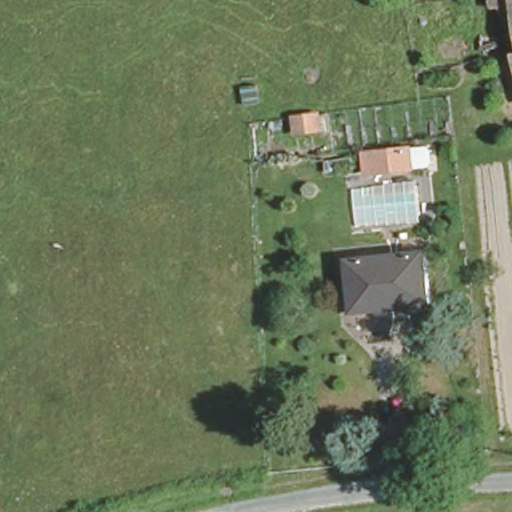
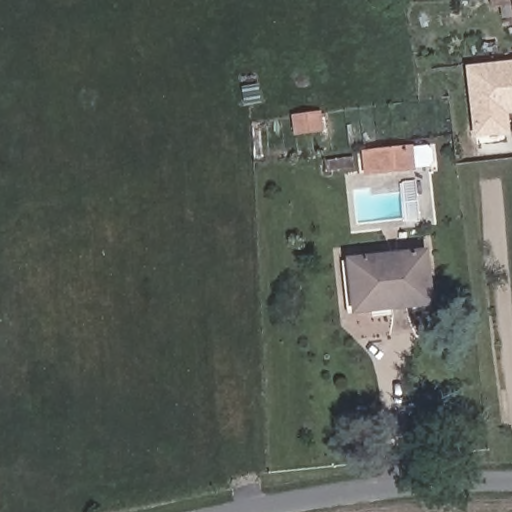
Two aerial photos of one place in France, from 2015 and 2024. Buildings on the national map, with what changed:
unchanged [(489,0),(510,0),(489,4),(489,0)]
unchanged [(512,0),(512,12),(510,0),(512,0)]
unchanged [(512,47),(512,57),(510,47),(512,47)]
new [(512,100),(507,101),(510,134),(474,138),(466,66),(512,62),(512,100)]
unchanged [(246,81),(263,81),(264,99),(247,100),(246,81)]
unchanged [(295,133),(293,112),(324,108),(326,130),(295,133)]
unchanged [(384,182),(383,171),(373,172),(370,142),(417,139),(419,166),(410,167),(410,181),(384,182)]
unchanged [(327,155),(355,152),(356,164),(328,167),(327,155)]
unchanged [(435,302),(394,307),(394,297),(361,302),(356,254),(428,245),(435,302)]

